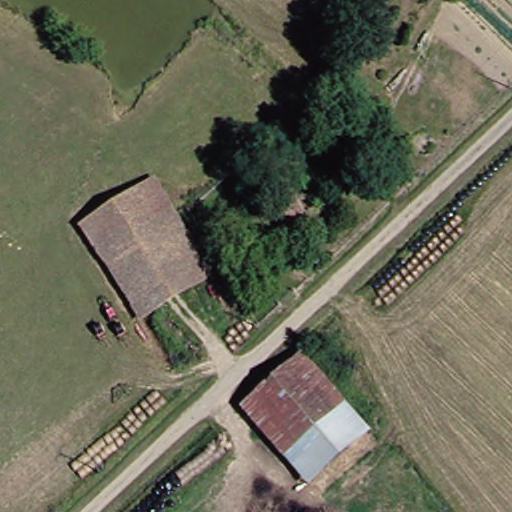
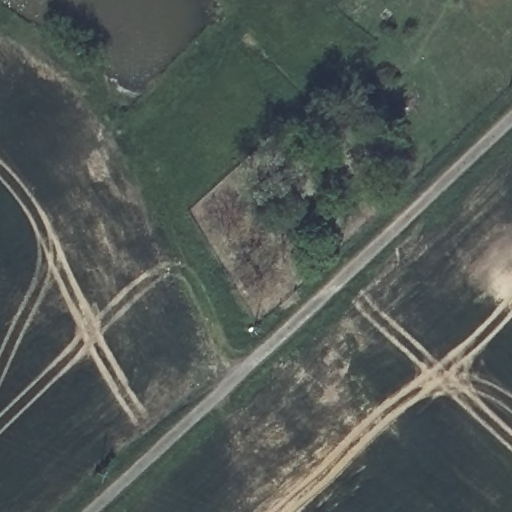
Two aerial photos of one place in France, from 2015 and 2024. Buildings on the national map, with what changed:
demolished [(91,231),(99,224),(156,186),(178,214),(165,226),(175,240),(188,230),(207,257),(202,266),(205,274),(201,279),(204,285),(166,312),(153,324),(149,317),(91,231)]
demolished [(247,409),(308,354),(377,434),(315,490),(247,409)]

